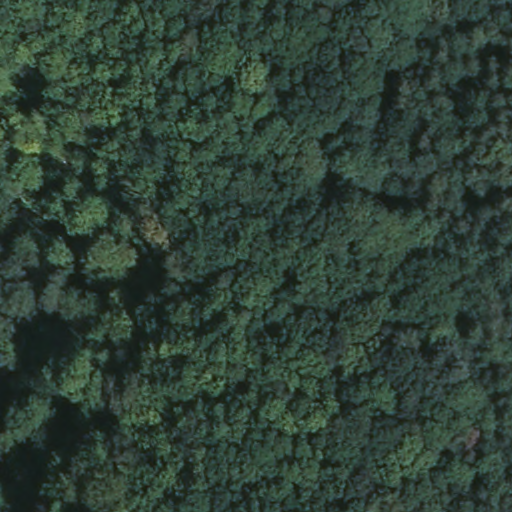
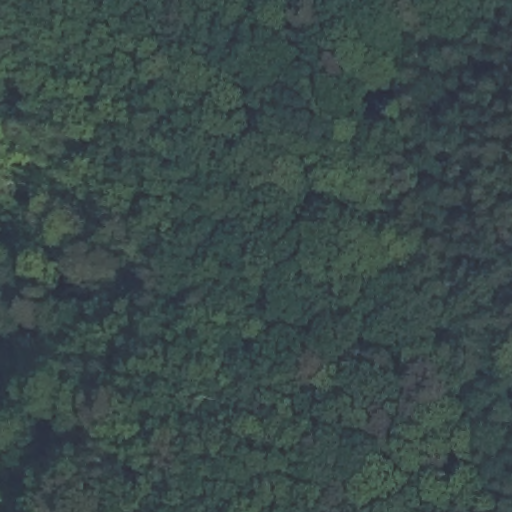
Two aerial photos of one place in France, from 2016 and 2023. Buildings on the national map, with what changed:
[]

